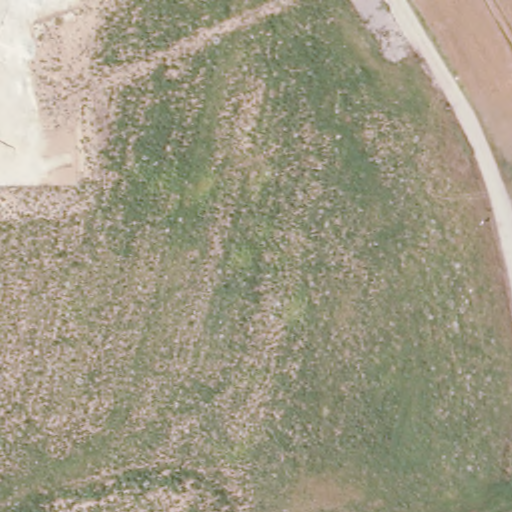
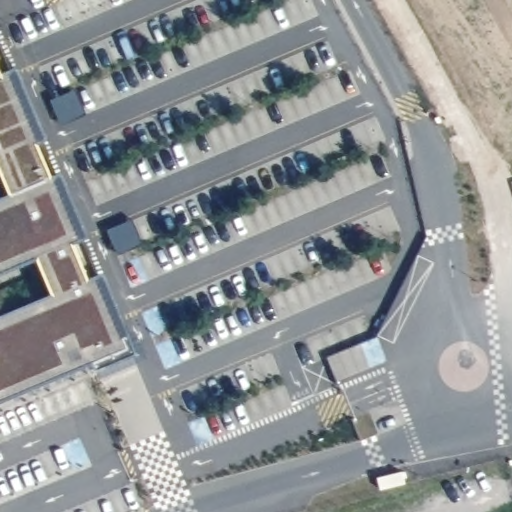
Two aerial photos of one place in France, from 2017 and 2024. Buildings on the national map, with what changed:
new [(55,180),(61,176),(86,236),(78,241),(94,280),(101,276),(131,343),(0,400),(0,321),(58,296),(41,259),(0,276),(0,204),(13,199),(0,170),(0,37),(45,142),(41,144),(55,180)]
new [(61,125),(50,99),(75,88),(86,114),(61,125)]
new [(118,254),(106,228),(133,217),(143,242),(118,254)]

